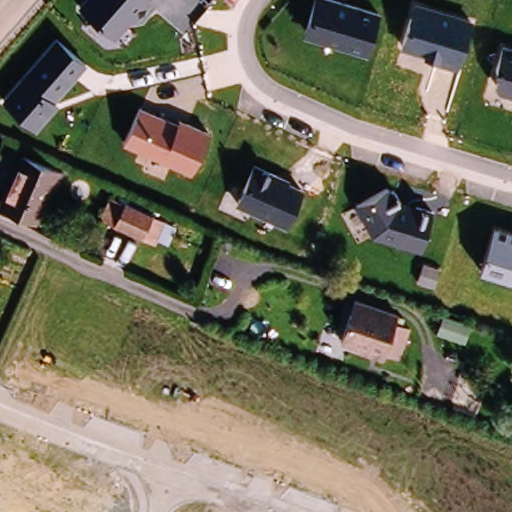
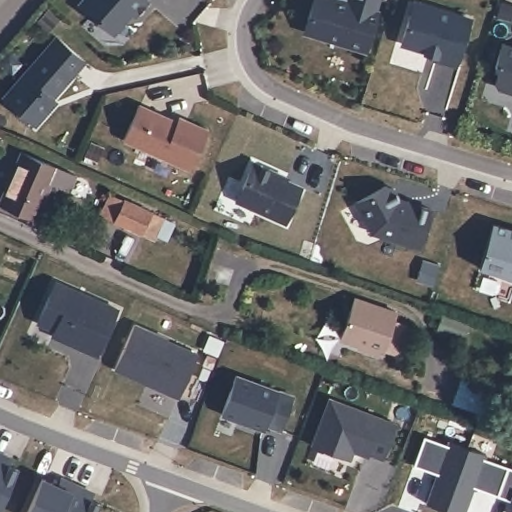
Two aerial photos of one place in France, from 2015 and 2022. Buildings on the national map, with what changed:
unchanged [(145,0),(115,36),(78,3),(80,0),(145,0)]
unchanged [(366,52),(306,33),(314,0),(348,0),(378,9),(366,52)]
unchanged [(471,18),(457,68),(421,57),(423,51),(401,44),(415,0),(471,18)]
unchanged [(87,60),(55,98),(57,100),(35,126),(1,99),(56,35),(87,60)]
unchanged [(497,90),(494,82),(504,46),(512,48),(512,94),(497,90)]
unchanged [(191,170),(126,141),(140,105),(177,120),(180,115),(208,128),(191,170)]
unchanged [(41,219),(7,210),(24,160),(52,168),(58,169),(52,187),(41,219)]
unchanged [(287,222),(237,202),(254,161),(291,175),(289,180),(304,186),(287,222)]
unchanged [(421,246),(372,233),(357,203),(392,182),(402,199),(434,207),(421,246)]
unchanged [(169,220),(157,244),(116,226),(125,203),(169,220)]
unchanged [(512,227),(512,277),(480,267),(494,222),(512,227)]
new [(55,282),(117,310),(97,356),(61,340),(63,335),(37,323),(55,282)]
unchanged [(399,311),(383,354),(365,348),(367,343),(341,332),(356,294),(399,311)]
new [(134,325),(167,339),(166,341),(197,355),(179,396),(147,382),(147,384),(114,369),(134,325)]
new [(236,376),(294,397),(281,430),(266,425),(265,430),(222,414),(236,376)]
new [(461,378),(483,385),(474,411),(452,403),(461,378)]
new [(327,404),(394,428),(382,463),(367,458),(367,461),(351,455),(348,464),(310,450),(327,404)]
new [(3,463),(19,470),(0,511),(0,452),(7,455),(3,463)]
new [(42,478),(58,485),(62,478),(89,490),(86,497),(102,504),(98,512),(28,512),(42,478)]

